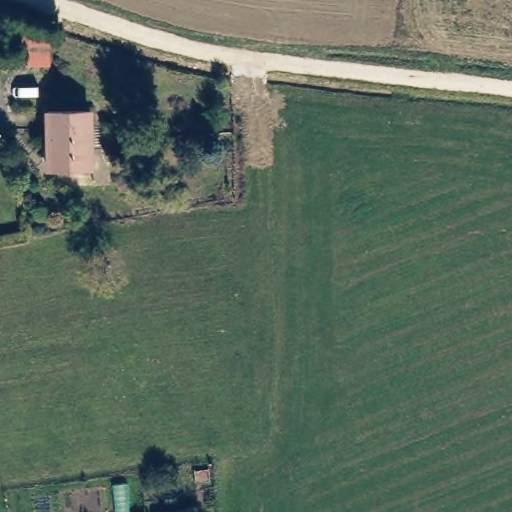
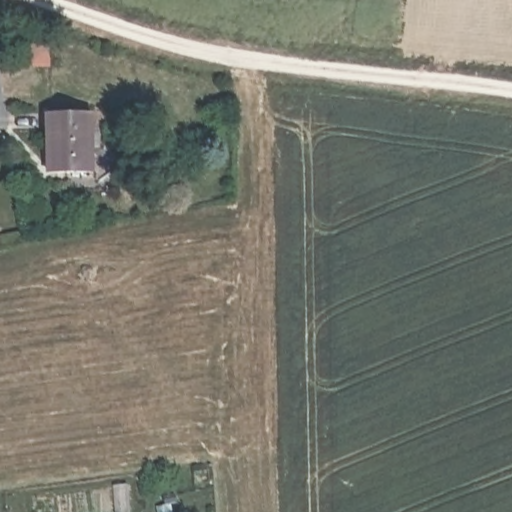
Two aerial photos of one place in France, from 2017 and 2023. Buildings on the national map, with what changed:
unchanged [(17,27),(55,34),(52,68),(30,67),(31,52),(13,50),(17,27)]
unchanged [(95,112),(100,177),(57,177),(55,114),(95,112)]

